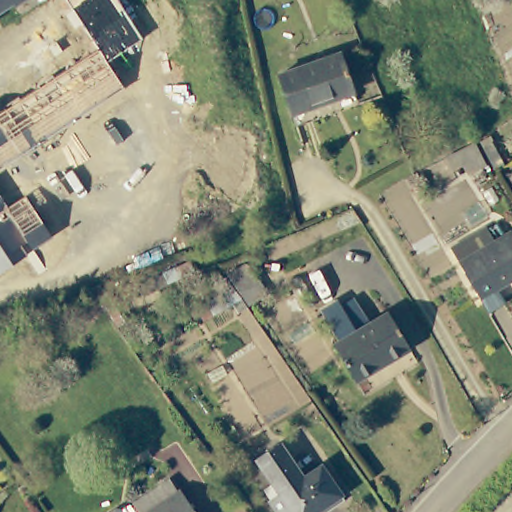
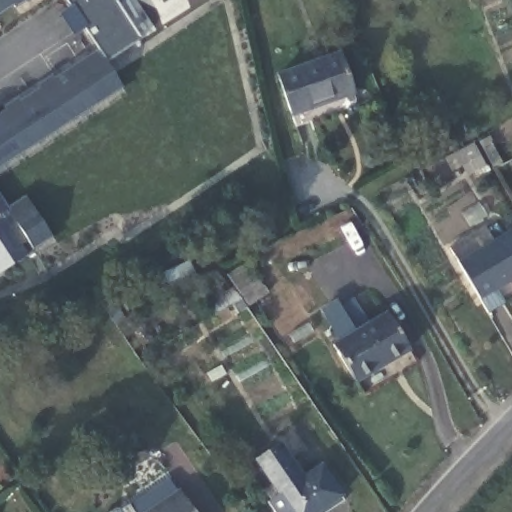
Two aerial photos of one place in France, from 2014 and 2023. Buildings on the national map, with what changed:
unchanged [(6,0),(7,5),(8,7),(0,12),(0,0),(6,0)]
unchanged [(12,4),(8,7),(7,5),(6,0),(30,0),(16,10),(12,4)]
unchanged [(106,61),(105,59),(99,50),(66,0),(114,0),(140,40),(106,61)]
unchanged [(105,59),(106,61),(122,89),(0,171),(0,114),(99,50),(105,59)]
unchanged [(278,72),(340,50),(357,101),(295,122),(278,72)]
unchanged [(7,207),(25,196),(51,239),(32,250),(28,242),(20,245),(26,254),(0,272),(0,196),(7,207)]
unchanged [(450,246),(485,226),(493,241),(512,230),(512,279),(495,288),(504,302),(489,311),(481,297),(450,246)]
unchanged [(156,275),(162,285),(137,300),(131,290),(156,275)]
unchanged [(340,347),(320,310),(336,300),(340,306),(353,298),(373,327),(340,347)]
unchanged [(390,317),(412,353),(358,386),(336,350),(390,317)]
unchanged [(255,466),(286,445),(307,480),(276,500),(255,466)]
unchanged [(307,480),(327,466),(347,497),(325,512),(268,512),(265,507),(276,500),(307,480)]
unchanged [(122,507),(162,480),(172,493),(173,492),(187,512),(126,512),(122,507)]
unchanged [(109,511),(112,512),(108,512),(109,511)]

